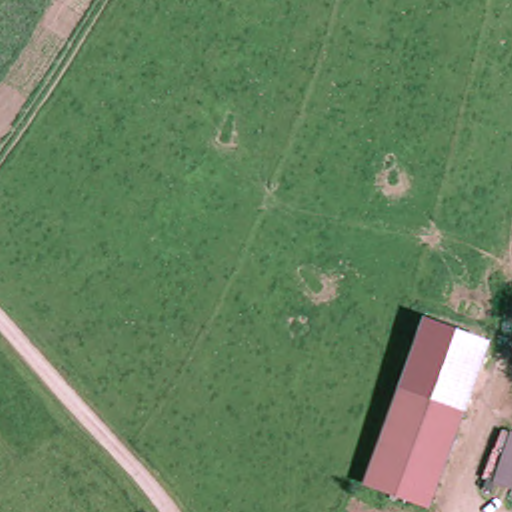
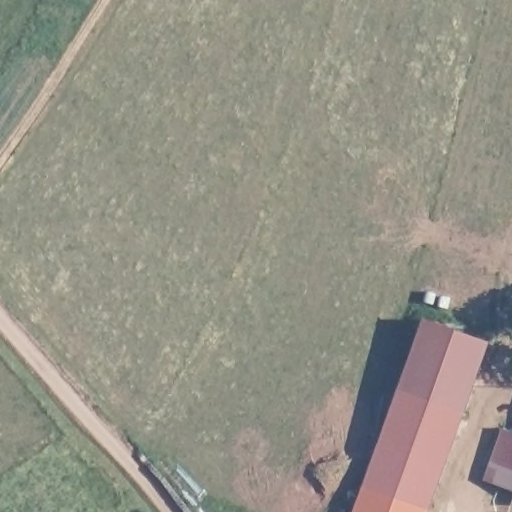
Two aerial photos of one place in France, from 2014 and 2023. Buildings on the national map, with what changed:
unchanged [(488,339),(428,505),(363,482),(423,315),(488,339)]
unchanged [(511,441),(512,441),(512,494),(499,491),(511,441)]

